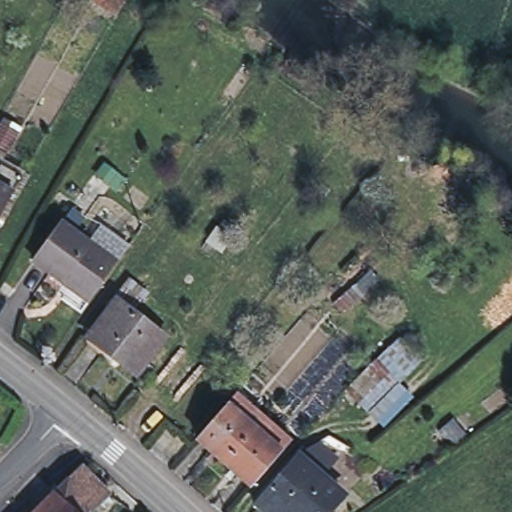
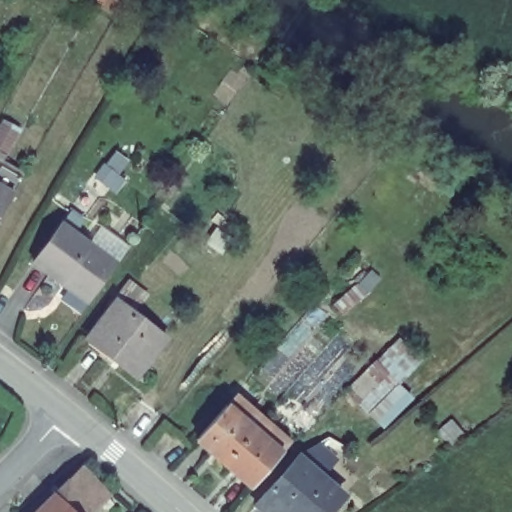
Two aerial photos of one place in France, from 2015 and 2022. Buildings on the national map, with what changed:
unchanged [(125,1),(116,17),(96,6),(99,0),(125,0),(125,1)]
unchanged [(13,195),(0,188),(0,125),(3,120),(20,130),(2,162),(25,176),(13,195)]
unchanged [(13,195),(0,217),(0,188),(13,195)]
unchanged [(57,280),(33,262),(61,224),(83,240),(100,252),(117,263),(91,299),(88,303),(73,292),(57,280)]
unchanged [(90,336),(118,302),(165,340),(135,377),(109,356),(87,339),(90,336)]
unchanged [(421,354),(400,382),(409,391),(379,425),(343,391),(378,361),(397,338),(421,354)]
unchanged [(196,440),(235,395),(263,418),(224,463),(196,440)]
unchanged [(290,442),(251,487),(224,463),(263,418),(290,442)]
unchanged [(263,497),(297,458),(344,497),(331,512),(280,512),(263,512),(256,506),(263,497)]
unchanged [(81,470),(110,498),(98,510),(95,512),(37,512),(61,489),(81,470)]

